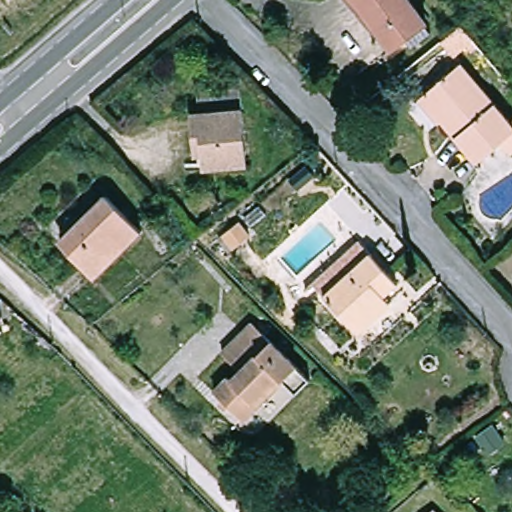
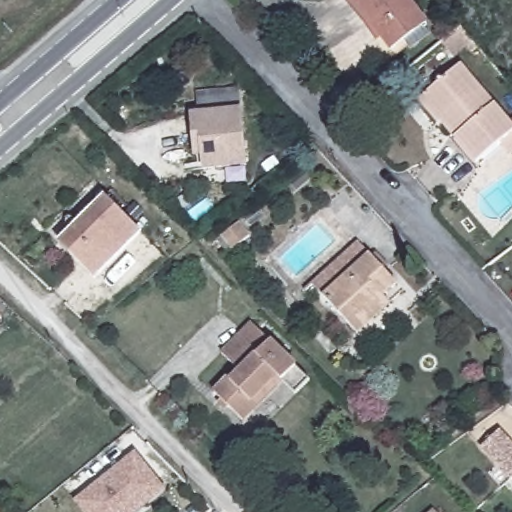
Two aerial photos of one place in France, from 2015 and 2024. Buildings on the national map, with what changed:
unchanged [(416,0),(430,19),(427,21),(434,30),(415,45),(409,36),(394,47),(359,0),(416,0)]
unchanged [(512,118),(512,151),(504,141),(480,160),(445,119),(443,121),(422,96),(464,61),(512,118)]
unchanged [(203,177),(201,163),(196,164),(191,123),(198,121),(196,103),(239,99),(246,173),(203,177)]
unchanged [(146,234),(98,281),(61,244),(108,197),(146,234)]
unchanged [(250,238),(233,252),(221,238),(239,224),(250,238)]
unchanged [(388,297),(395,306),(361,336),(328,298),(337,290),(326,277),(364,243),(376,256),(402,285),(388,297)]
unchanged [(0,326),(0,314),(6,321),(0,326)]
unchanged [(299,392),(288,380),(248,420),(216,388),(231,373),(236,377),(244,369),(225,350),(256,320),(313,378),(299,392)]
new [(499,428),(512,443),(512,475),(508,479),(479,445),(499,428)]
new [(136,454),(167,490),(151,504),(143,496),(124,512),(85,512),(77,503),(136,454)]

